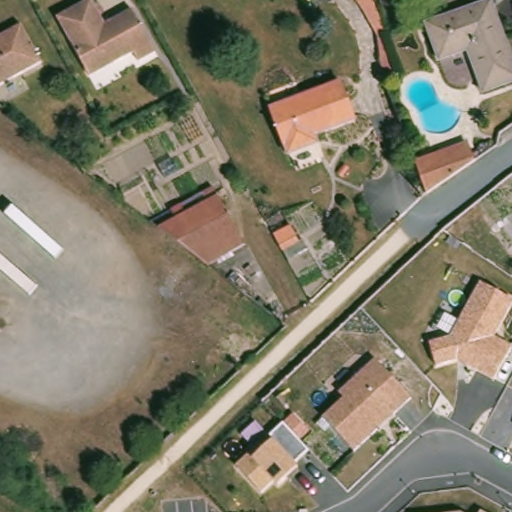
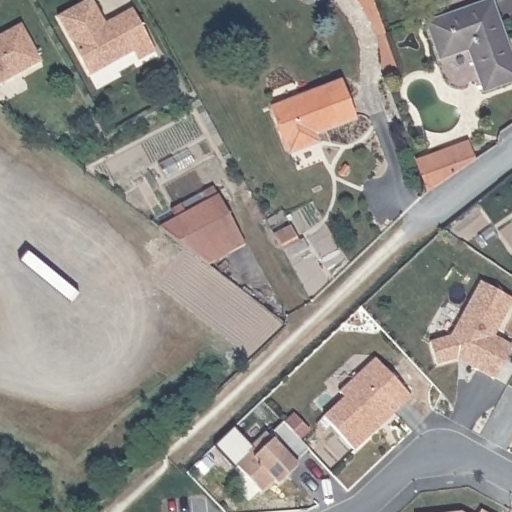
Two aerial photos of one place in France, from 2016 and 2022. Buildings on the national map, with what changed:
unchanged [(51,11),(73,0),(89,0),(99,20),(126,6),(148,49),(131,58),(126,49),(106,59),(82,71),(79,66),(51,11)]
unchanged [(367,21),(350,0),(371,0),(381,16),(367,21)]
unchanged [(489,3),(512,45),(512,77),(491,89),(471,50),(445,61),(428,33),(489,3)]
unchanged [(37,61),(0,79),(0,32),(17,23),(37,61)]
unchanged [(387,33),(393,74),(381,76),(372,35),(387,33)]
unchanged [(312,148),(292,156),(275,108),(344,83),(358,123),(321,138),(322,145),(312,148)]
unchanged [(444,151),(447,151),(469,143),(475,157),(467,164),(455,175),(453,177),(446,183),(430,197),(417,161),(436,155),(444,151)]
unchanged [(163,228),(159,225),(176,216),(172,208),(185,202),(188,211),(209,200),(207,195),(219,190),(245,244),(207,262),(163,228)]
unchanged [(285,238),(290,250),(275,257),(269,245),(285,238)]
unchanged [(479,282),(512,299),(512,305),(496,337),(511,346),(493,379),(457,361),(436,365),(429,343),(450,336),(479,282)]
unchanged [(337,392),(375,360),(412,397),(353,452),(322,417),(342,397),(337,392)]
unchanged [(263,431),(270,436),(282,424),(307,451),(296,462),(298,468),(276,488),(271,483),(259,494),(232,465),(263,431)]
unchanged [(482,510),(485,512),(480,512),(482,510)]

